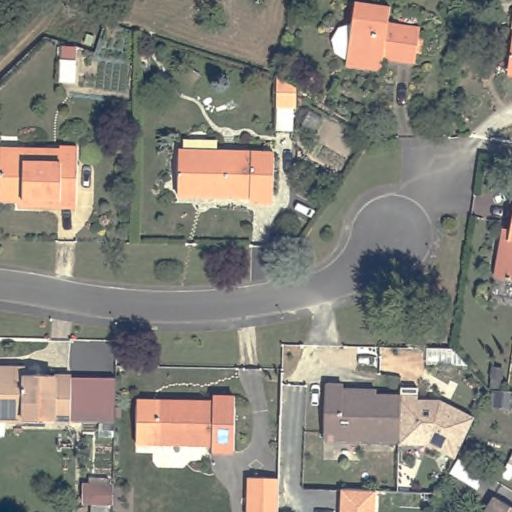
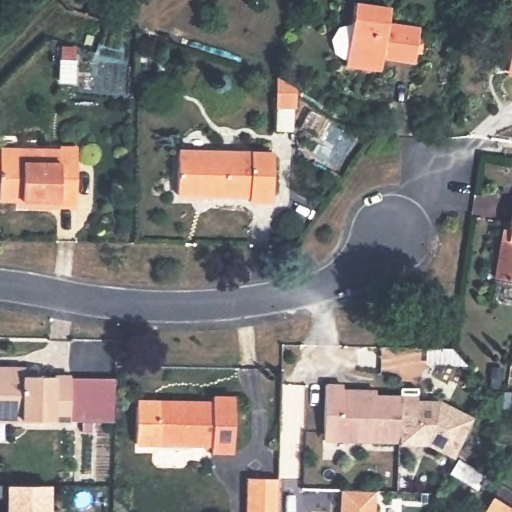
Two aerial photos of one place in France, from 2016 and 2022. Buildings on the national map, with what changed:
unchanged [(351,59),(359,0),(387,0),(395,1),(392,16),(425,21),(420,56),(387,51),(386,63),(377,62),(351,59)]
unchanged [(84,35),(92,37),(88,49),(81,45),(84,35)]
unchanged [(512,71),(510,70),(512,53),(512,71)]
unchanged [(305,82),(303,105),(283,104),(285,68),(305,82)]
unchanged [(67,150),(67,141),(83,141),(82,201),(66,201),(66,196),(7,196),(7,177),(0,177),(0,151),(7,151),(7,149),(67,150)]
unchanged [(183,149),(278,152),(276,202),(252,202),(252,196),(182,194),(183,149)]
unchanged [(511,240),(512,234),(512,281),(497,279),(504,239),(511,240)]
unchanged [(27,368),(27,376),(72,377),(72,384),(72,421),(72,422),(10,420),(0,420),(0,367),(27,368)]
unchanged [(403,395),(403,401),(402,412),(402,441),(326,438),(328,384),(343,385),(343,393),(403,395)]
unchanged [(219,392),(241,392),(239,447),(217,446),(217,440),(143,438),(144,400),(145,395),(166,395),(219,397),(219,392)]
unchanged [(441,400),(477,418),(456,460),(430,448),(402,447),(402,441),(402,412),(403,401),(441,400)]
unchanged [(280,512),(249,512),(250,476),(281,477),(280,512)]
new [(10,498),(0,498),(0,486),(51,486),(51,512),(10,512),(10,498)]
unchanged [(345,490),(378,491),(377,512),(344,512),(345,490)]
unchanged [(497,493),(512,503),(512,512),(485,512),(497,493)]

